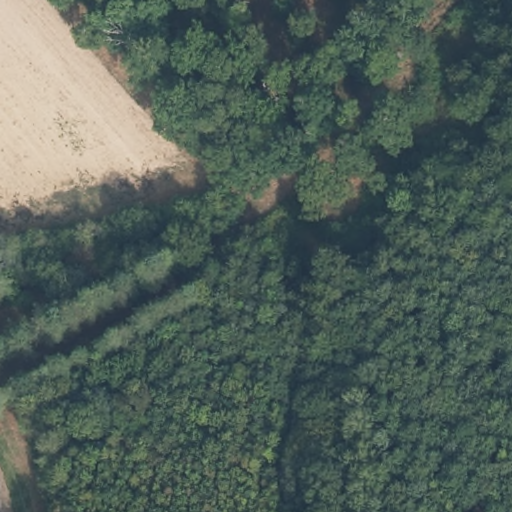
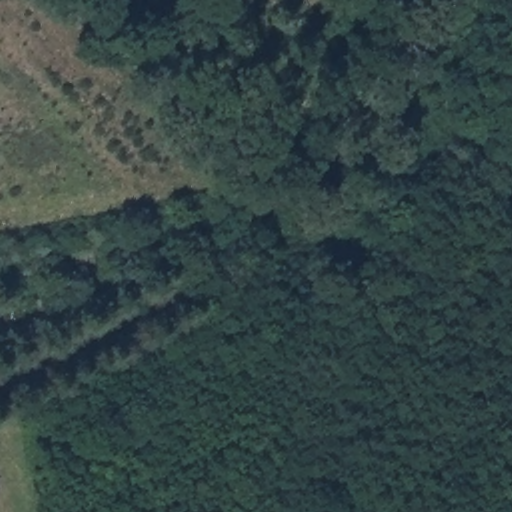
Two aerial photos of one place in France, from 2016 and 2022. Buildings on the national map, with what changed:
unchanged [(111,259),(80,267),(77,250),(108,243),(111,259)]
unchanged [(0,289),(0,287),(0,274),(50,258),(51,274),(0,289)]

